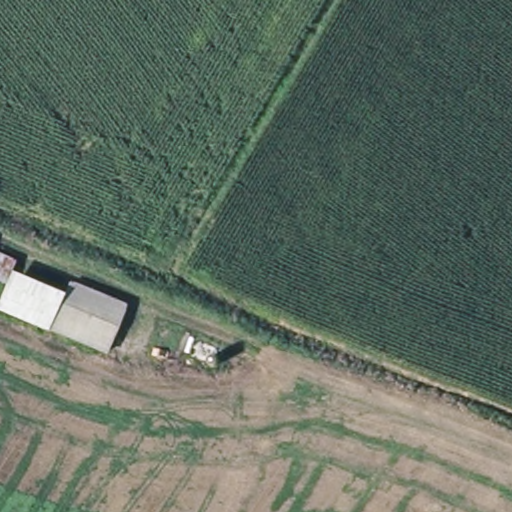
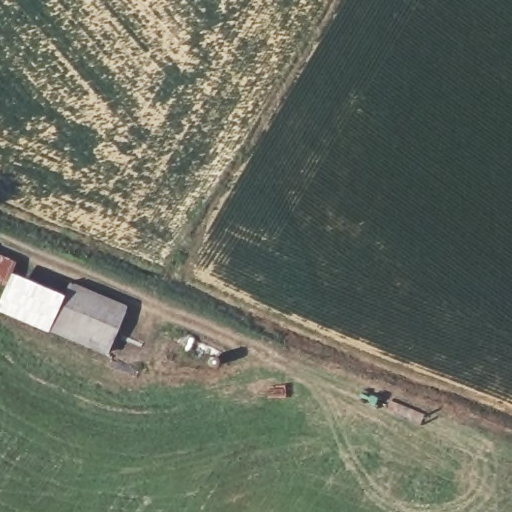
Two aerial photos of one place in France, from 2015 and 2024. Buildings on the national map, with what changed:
unchanged [(10,268),(61,291),(66,280),(125,303),(103,354),(0,310),(0,290),(3,283),(0,282),(0,253),(14,258),(10,268)]

